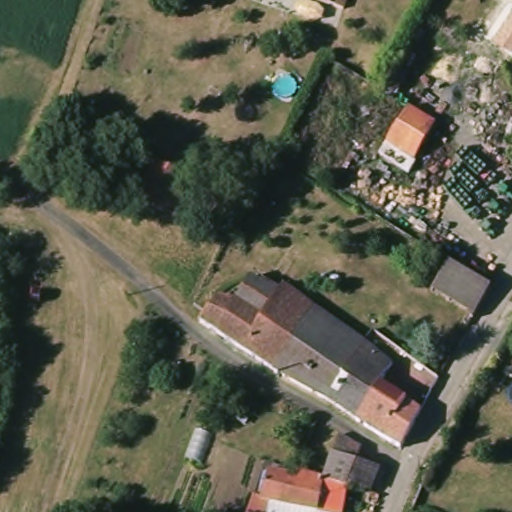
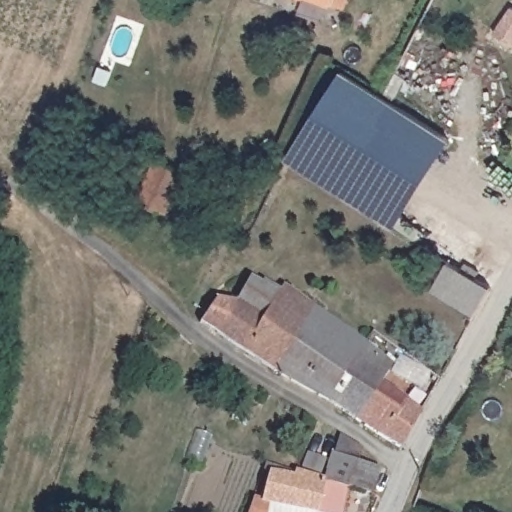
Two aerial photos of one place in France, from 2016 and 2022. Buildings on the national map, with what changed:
unchanged [(345,6),(343,12),(305,0),(347,0),(345,6)]
new [(510,7),(512,9),(512,44),(494,32),(510,7)]
new [(287,158),(342,72),(450,140),(396,227),(287,158)]
demolished [(407,115),(430,130),(413,163),(389,147),(407,115)]
unchanged [(186,174),(168,214),(166,213),(141,202),(158,162),(186,174)]
new [(432,289),(448,262),(490,287),(473,316),(432,289)]
unchanged [(248,283),(279,303),(261,331),(230,311),(248,283)]
unchanged [(220,304),(230,311),(261,331),(279,303),(286,292),(317,316),(279,378),(202,329),(220,304)]
unchanged [(314,399),(297,389),(279,378),(317,316),(365,352),(330,408),(314,399)]
unchanged [(394,375),(383,392),(360,428),(330,408),(365,352),(394,375)]
unchanged [(424,419),(404,455),(360,428),(383,392),(424,419)]
unchanged [(337,457),(342,438),(358,447),(354,462),(381,470),(372,489),(367,488),(366,491),(350,487),(327,479),(333,456),(337,457)]
unchanged [(272,472),(298,478),(300,471),(318,477),(327,479),(350,487),(344,512),(318,512),(318,511),(273,502),(270,512),(253,512),(257,501),(258,496),(262,497),(272,472)]

